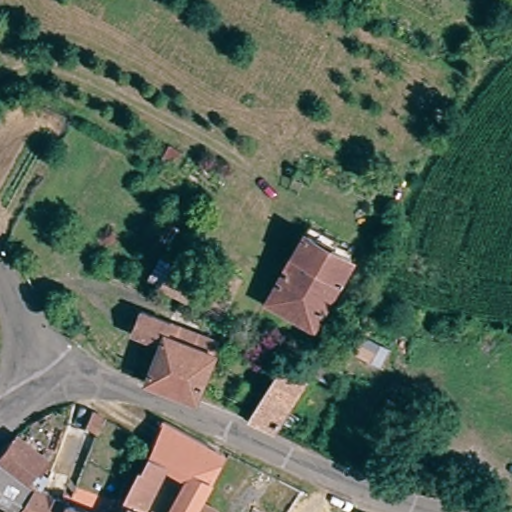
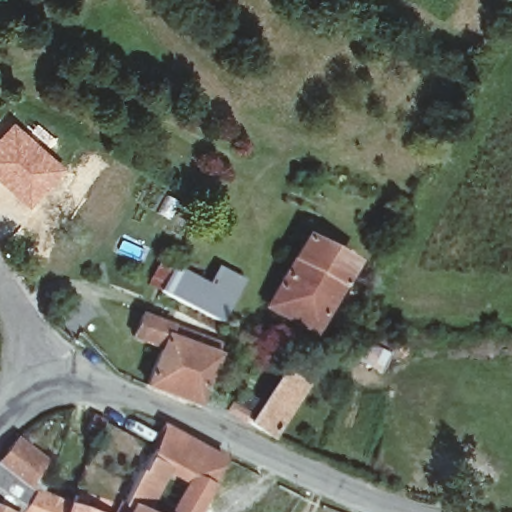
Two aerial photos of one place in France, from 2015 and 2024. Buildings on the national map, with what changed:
new [(12,119),(64,164),(29,209),(0,183),(0,134),(12,119)]
unchanged [(263,315),(267,307),(309,229),(337,244),(332,252),(351,263),(311,332),(292,321),(289,330),(263,315)]
new [(180,268),(207,282),(217,265),(246,281),(225,325),(165,294),(180,268)]
unchanged [(158,347),(133,335),(141,312),(167,322),(163,333),(215,352),(195,401),(144,383),(158,347)]
unchanged [(66,318),(67,319),(77,329),(74,332),(67,338),(55,328),(66,318)]
unchanged [(245,416),(263,388),(270,393),(278,381),(301,395),(277,436),(245,416)]
unchanged [(190,470),(147,448),(146,446),(148,441),(159,420),(224,455),(211,481),(190,470)]
unchanged [(12,430),(43,452),(36,464),(45,470),(37,481),(35,480),(13,509),(12,512),(0,512),(0,446),(12,430)]
unchanged [(119,497),(135,464),(138,465),(156,477),(151,490),(145,512),(122,512),(126,501),(119,497)]
unchanged [(211,481),(202,502),(197,512),(168,512),(190,470),(211,481)]
unchanged [(35,480),(37,481),(66,494),(67,497),(100,512),(12,512),(13,509),(35,480)]
unchanged [(119,497),(126,501),(122,512),(107,512),(113,496),(119,497)]
unchanged [(215,510),(214,512),(197,512),(202,502),(215,510)]

